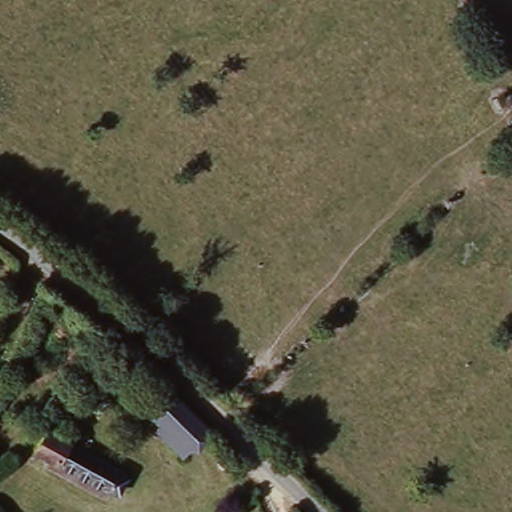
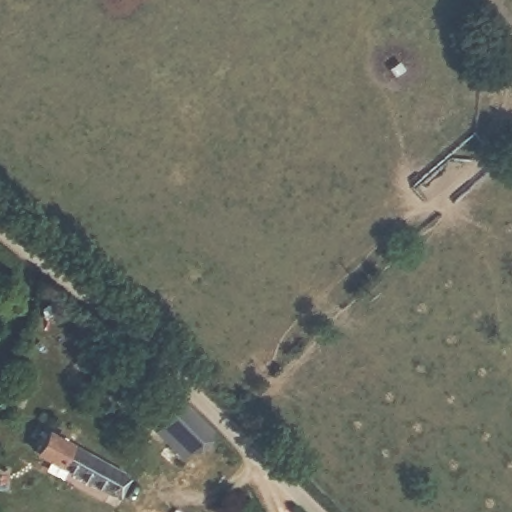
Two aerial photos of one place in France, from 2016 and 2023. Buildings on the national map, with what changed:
unchanged [(179,461),(154,436),(160,430),(147,417),(169,396),(208,431),(179,461)]
unchanged [(131,477),(124,494),(118,499),(34,454),(48,430),(131,477)]

